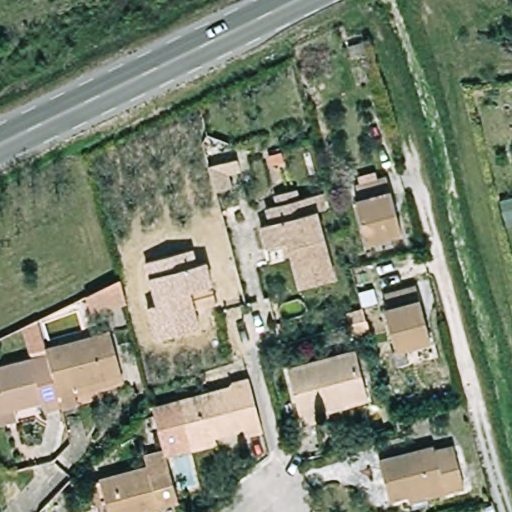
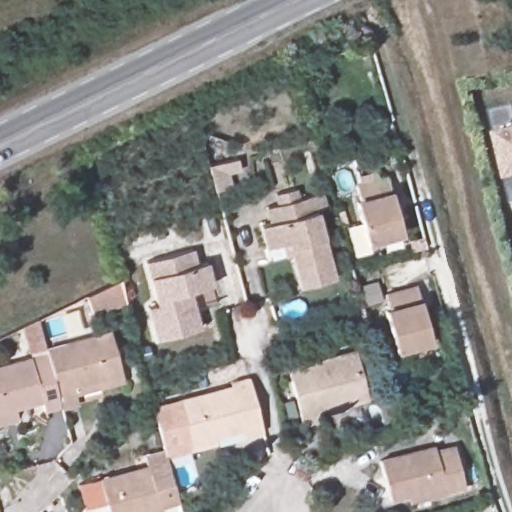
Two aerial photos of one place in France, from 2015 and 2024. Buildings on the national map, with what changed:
new [(506,184),(494,136),(497,135),(490,112),(512,106),(512,201),(507,184),(506,184)]
unchanged [(387,175),(401,231),(367,240),(355,197),(359,196),(355,183),(387,175)]
unchanged [(260,225),(269,222),(265,206),(312,194),(334,276),(301,285),(291,252),(278,256),(271,258),(266,245),(260,225)]
unchanged [(192,290),(201,330),(154,339),(147,308),(156,305),(149,277),(144,262),(195,250),(198,263),(208,262),(213,284),(192,290)]
unchanged [(126,301),(93,312),(86,294),(120,276),(126,301)]
unchanged [(415,282),(430,340),(395,350),(384,305),(387,304),(383,290),(415,282)]
unchanged [(370,333),(355,337),(350,323),(366,317),(370,333)]
unchanged [(110,330),(124,377),(76,391),(77,396),(61,400),(48,352),(46,347),(110,330)]
unchanged [(355,347),(368,395),(347,400),(347,402),(318,410),(320,417),(303,422),(287,365),(355,347)]
unchanged [(0,421),(0,364),(48,352),(61,400),(61,405),(44,408),(43,400),(15,407),(18,417),(0,421)]
unchanged [(246,440),(243,431),(215,438),(217,446),(192,453),(179,402),(250,383),(264,434),(246,440)]
unchanged [(434,442),(435,447),(454,443),(465,486),(409,500),(407,493),(390,498),(379,456),(434,442)]
unchanged [(159,512),(108,512),(107,506),(96,510),(89,485),(100,482),(148,468),(151,479),(171,475),(179,505),(159,510),(159,512)]

